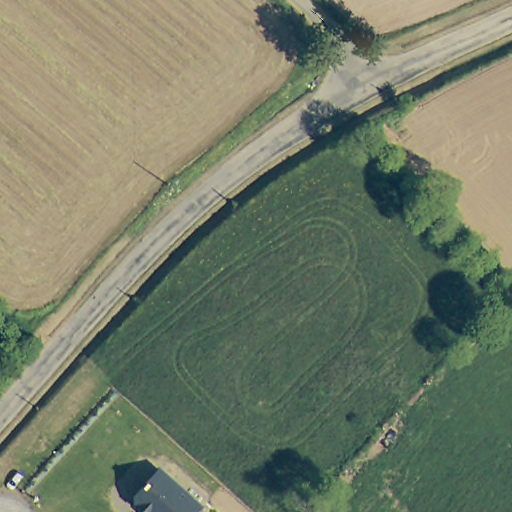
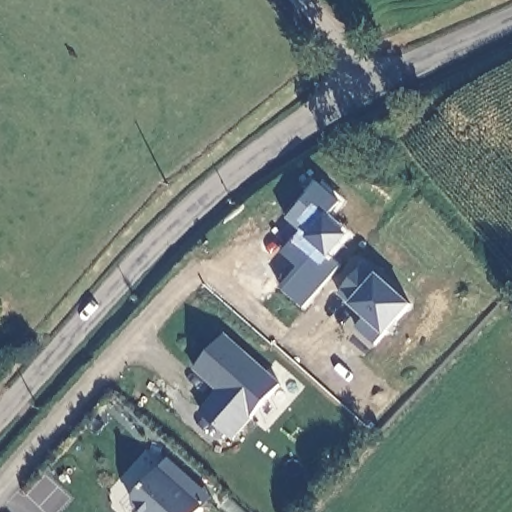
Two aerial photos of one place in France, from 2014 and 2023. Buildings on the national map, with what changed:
new [(303,269),(291,259),(310,236),(292,221),(324,184),(346,204),(332,219),(352,238),(334,257),(346,267),(308,310),(285,289),(303,269)]
new [(369,267),(414,308),(379,347),(360,329),(369,319),(343,295),(369,267)]
new [(198,413),(217,392),(194,371),(226,334),(283,384),(236,442),(198,413)]
unchanged [(202,512),(138,512),(133,508),(133,499),(159,468),(205,509),(202,512)]

